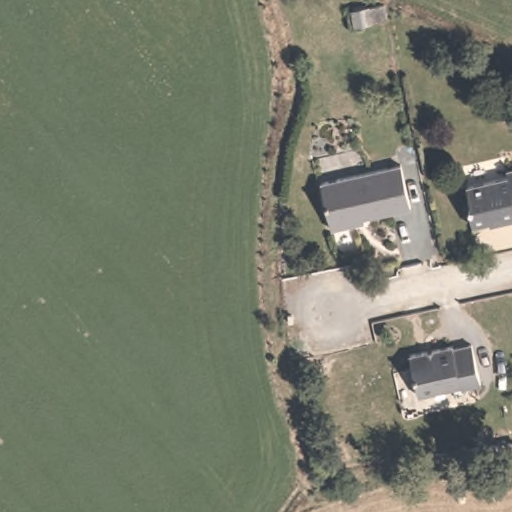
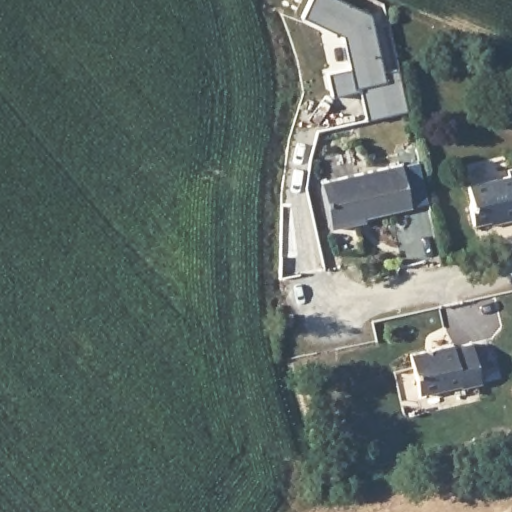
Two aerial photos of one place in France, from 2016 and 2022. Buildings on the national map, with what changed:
new [(339,0),(369,15),(382,75),(398,71),(406,110),(365,119),(360,91),(332,97),(327,76),(350,70),(344,36),(303,16),(310,0),(339,0)]
unchanged [(414,214),(357,230),(358,235),(340,239),(328,193),(405,173),(414,214)]
unchanged [(512,228),(500,232),(493,229),(470,235),(467,199),(508,191),(507,181),(512,180),(512,228)]
unchanged [(471,350),(480,391),(419,402),(409,363),(471,350)]

